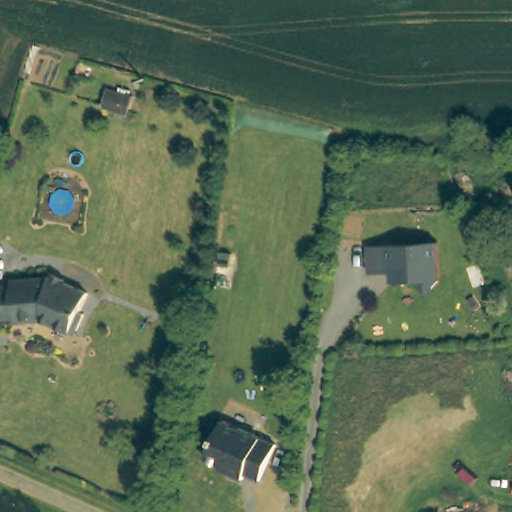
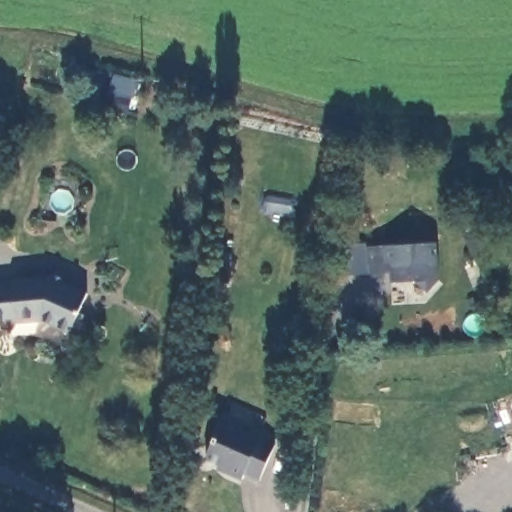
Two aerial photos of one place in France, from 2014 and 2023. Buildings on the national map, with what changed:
unchanged [(425,298),(413,288),(388,289),(388,278),(372,279),(371,252),(380,251),(434,250),(435,287),(425,298)]
unchanged [(91,313),(81,333),(45,317),(15,323),(14,315),(0,317),(0,285),(20,281),(19,277),(46,272),(49,273),(53,267),(66,275),(64,280),(89,290),(81,309),(91,313)]
unchanged [(225,425),(280,446),(265,482),(250,477),(248,482),(232,476),(233,472),(210,463),(225,425)]

